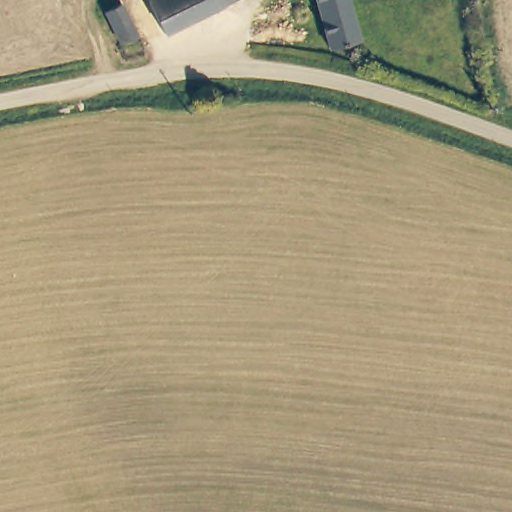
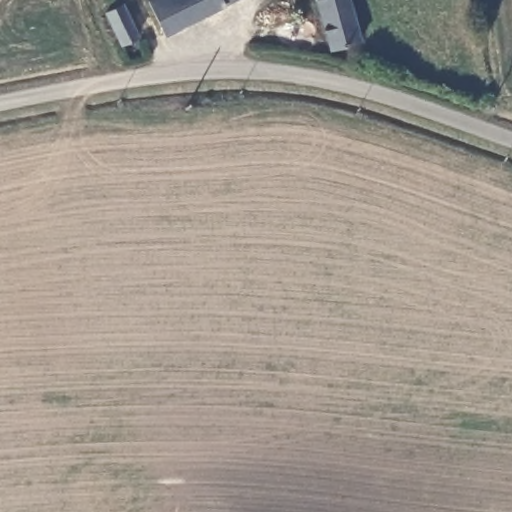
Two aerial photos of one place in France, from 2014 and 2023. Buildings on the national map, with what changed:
unchanged [(150,0),(223,0),(225,4),(167,33),(150,0)]
unchanged [(234,0),(225,4),(223,0),(234,0)]
unchanged [(360,41),(330,50),(315,0),(347,0),(357,32),(360,41)]
unchanged [(127,6),(141,38),(125,45),(109,14),(127,6)]

